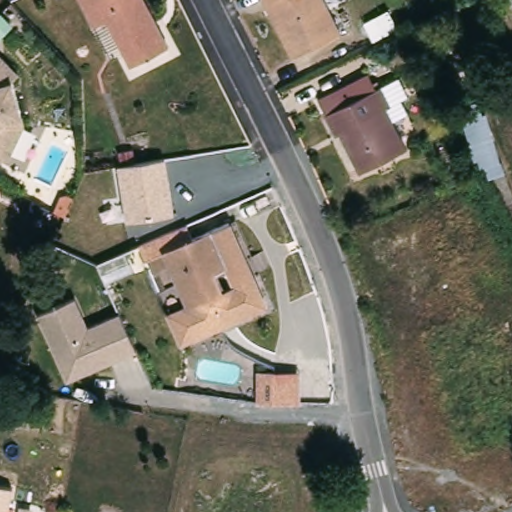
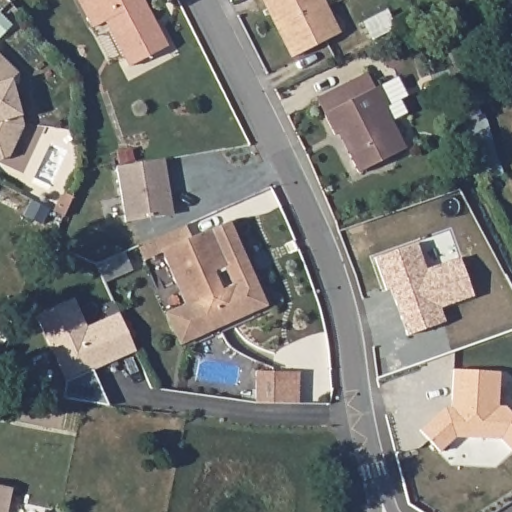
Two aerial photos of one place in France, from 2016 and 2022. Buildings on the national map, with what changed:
unchanged [(165,45),(129,61),(105,12),(91,20),(81,0),(145,0),(165,45)]
unchanged [(263,1),(263,0),(323,0),(338,30),(297,51),(290,54),(263,1)]
unchanged [(17,75),(10,82),(23,127),(7,162),(0,160),(0,58),(17,75)]
unchanged [(395,111),(390,114),(410,155),(361,179),(342,140),(338,142),(327,121),(321,107),(321,106),(372,80),(373,82),(380,95),(385,92),(395,111)]
unchanged [(164,158),(173,214),(124,221),(116,166),(164,158)]
unchanged [(230,221),(268,306),(179,345),(165,313),(185,305),(217,292),(234,285),(225,264),(211,231),(230,221)]
unchanged [(225,264),(208,271),(217,292),(185,305),(164,251),(211,231),(225,264)]
new [(436,325),(408,335),(396,300),(392,289),(387,290),(376,257),(417,243),(427,269),(460,258),(474,296),(441,308),(446,322),(436,325)]
unchanged [(87,325),(119,311),(136,351),(65,382),(36,314),(74,298),(87,325)]
demolished [(496,377),(512,373),(512,436),(456,451),(422,336),(480,319),(496,377)]
new [(298,402),(273,402),(256,401),(257,370),(273,370),(298,371),(298,402)]
new [(498,403),(507,404),(512,410),(512,452),(502,440),(457,439),(441,453),(420,429),(443,406),(451,406),(452,370),(500,372),(498,403)]
new [(7,512),(0,512),(0,484),(12,486),(7,512)]

